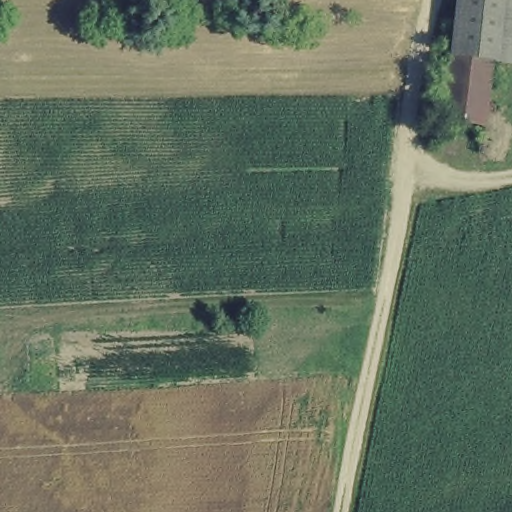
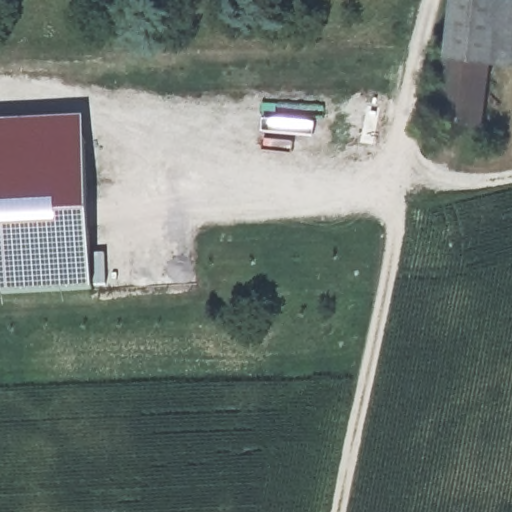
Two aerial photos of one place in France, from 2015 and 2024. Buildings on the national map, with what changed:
unchanged [(512,0),(512,66),(492,64),(487,113),(436,110),(447,0),(512,0)]
new [(102,284),(0,292),(0,109),(92,100),(102,284)]

